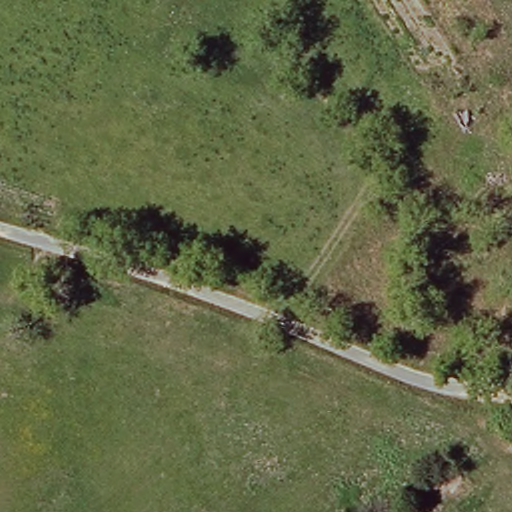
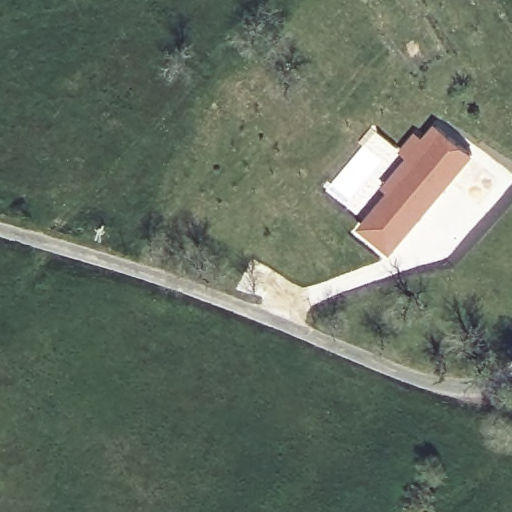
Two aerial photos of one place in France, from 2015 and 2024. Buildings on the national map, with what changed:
new [(360,229),(390,192),(383,187),(408,158),(400,151),(417,132),(425,137),(436,125),(475,157),(392,255),(360,229)]
demolished [(476,488),(447,511),(432,492),(460,469),(476,488)]
unchanged [(400,512),(399,511),(415,498),(428,512),(400,512)]

